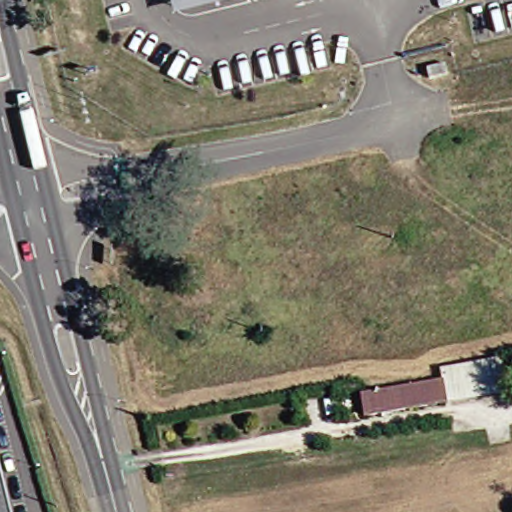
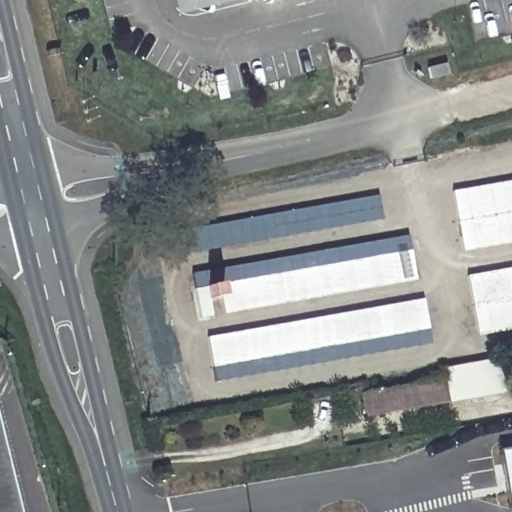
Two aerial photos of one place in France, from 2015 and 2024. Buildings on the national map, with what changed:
unchanged [(177,0),(183,0),(184,5),(202,0),(228,0),(180,12),(177,0)]
unchanged [(183,0),(202,0),(184,5),(183,0)]
new [(451,191),(512,181),(512,243),(463,252),(451,191)]
new [(183,230),(377,196),(383,220),(189,254),(183,230)]
new [(191,274),(406,235),(416,279),(224,314),(222,299),(209,301),(212,316),(199,319),(191,274)]
new [(467,276),(512,268),(512,328),(478,334),(467,276)]
new [(207,337),(423,300),(431,344),(214,382),(207,337)]
unchanged [(500,392),(357,417),(353,395),(437,383),(438,369),(498,358),(500,392)]
new [(508,508),(498,451),(512,449),(512,507),(508,508)]
unchanged [(0,497),(4,512),(0,512),(0,497)]

